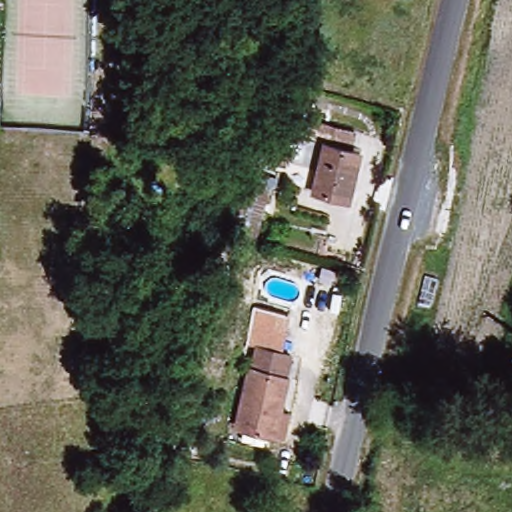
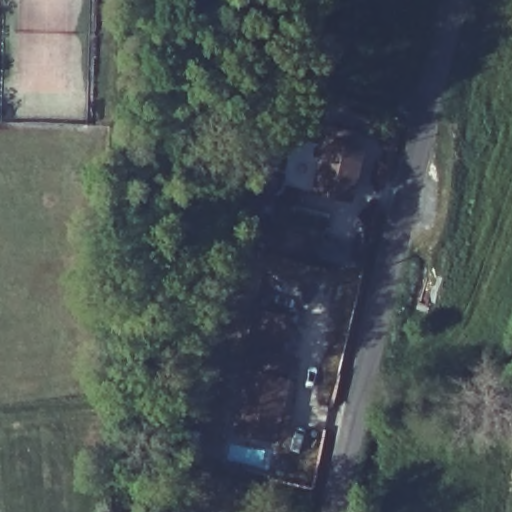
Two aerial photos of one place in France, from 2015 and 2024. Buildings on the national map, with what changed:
unchanged [(369,138),(364,155),(341,150),(330,200),(305,195),(319,129),(369,138)]
unchanged [(341,150),(364,155),(376,158),(364,208),(330,200),(341,150)]
unchanged [(237,430),(250,370),(253,371),(257,352),(288,358),(273,437),(237,430)]

